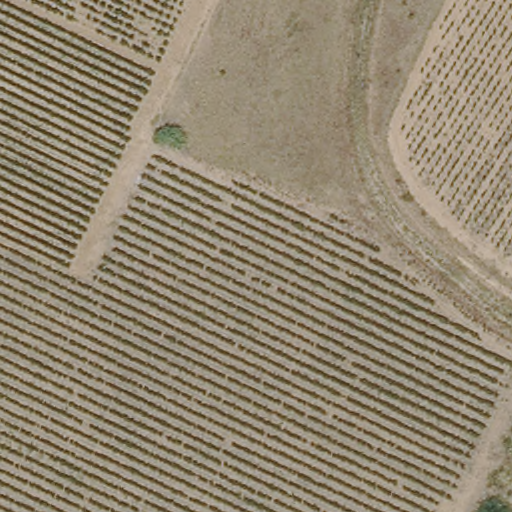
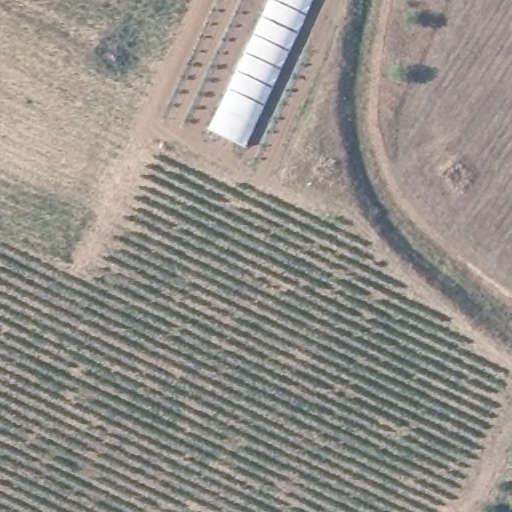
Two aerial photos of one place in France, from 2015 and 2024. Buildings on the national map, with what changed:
new [(261,15),(269,0),(313,0),(245,147),(207,129),(261,15)]

